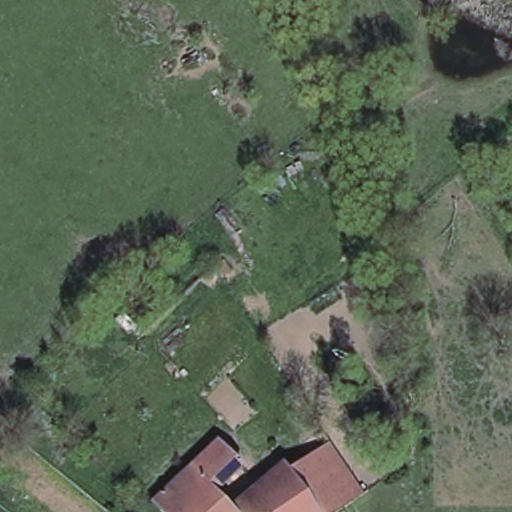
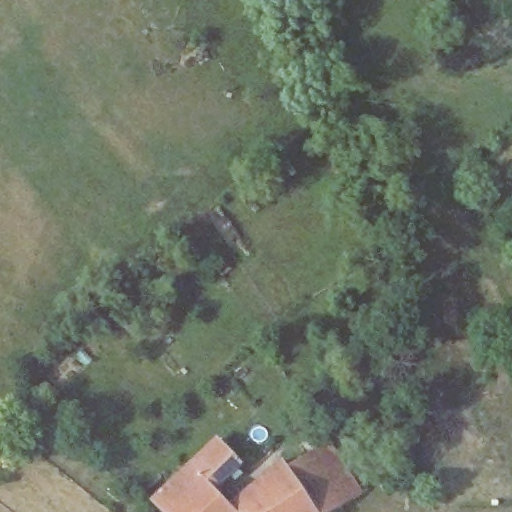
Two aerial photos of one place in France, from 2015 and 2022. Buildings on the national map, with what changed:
unchanged [(322,431),(361,491),(331,512),(234,512),(228,505),(280,462),(322,431)]
unchanged [(239,463),(213,489),(189,464),(216,438),(239,463)]
unchanged [(189,464),(213,489),(228,505),(234,512),(164,512),(152,500),(189,464)]

